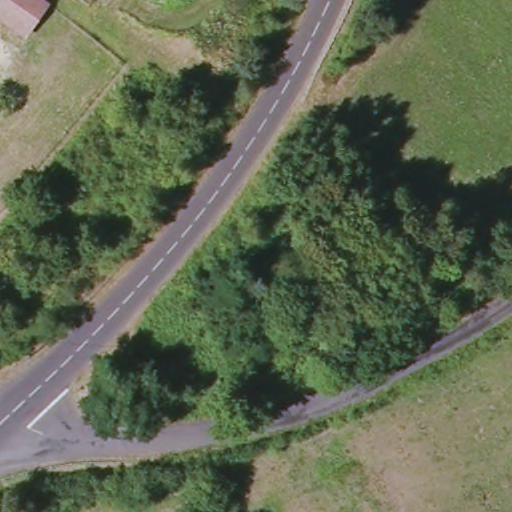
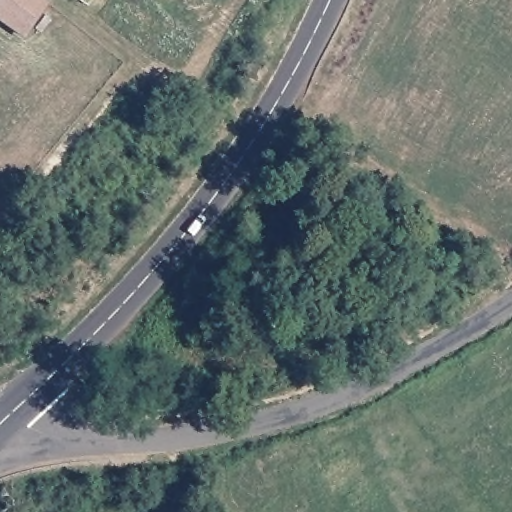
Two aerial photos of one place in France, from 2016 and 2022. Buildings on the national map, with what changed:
unchanged [(25,40),(0,22),(0,0),(43,0),(50,5),(25,40)]

